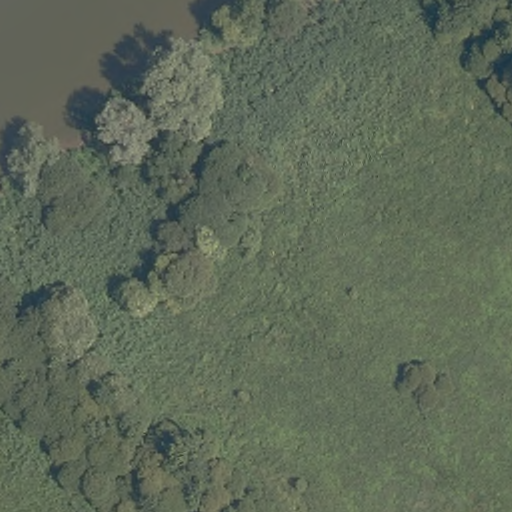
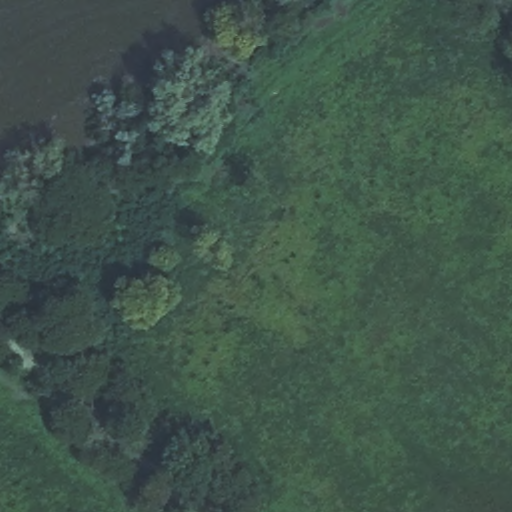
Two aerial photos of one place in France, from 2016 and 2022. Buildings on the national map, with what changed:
unchanged [(187,234),(198,225),(206,235),(196,244),(187,234)]

